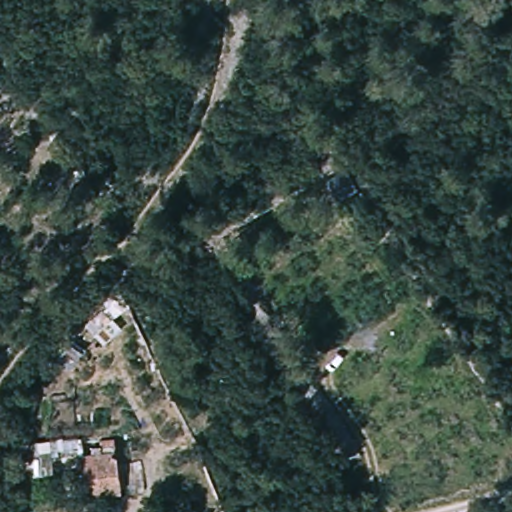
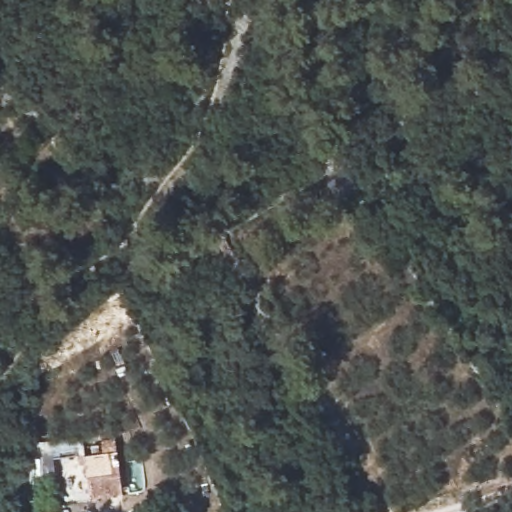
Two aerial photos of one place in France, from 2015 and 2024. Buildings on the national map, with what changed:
unchanged [(358,190),(341,200),(329,182),(348,172),(358,190)]
unchanged [(83,454),(90,454),(92,445),(100,446),(100,439),(112,439),(117,493),(98,494),(85,496),(84,469),(83,454)]

